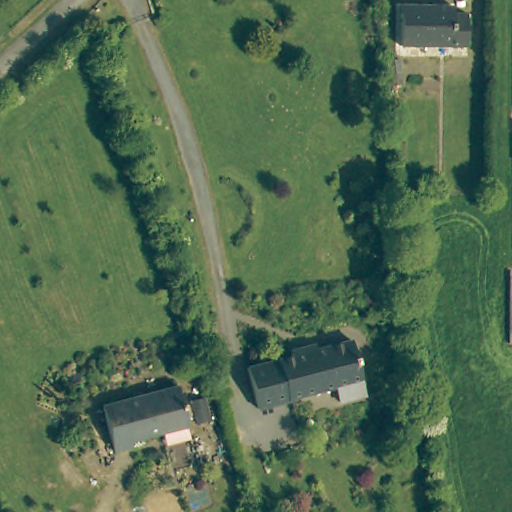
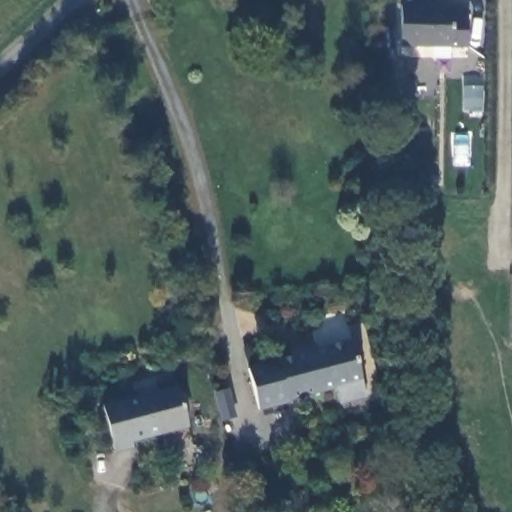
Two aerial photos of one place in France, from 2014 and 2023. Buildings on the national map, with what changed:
unchanged [(453,3),(453,12),(468,12),(467,45),(400,43),(402,1),(453,3)]
unchanged [(293,358),(292,353),(315,346),(316,351),(351,341),(367,396),(340,403),(336,390),(289,402),(290,403),(261,411),(250,370),(293,358)]
unchanged [(180,390),(190,428),(135,446),(136,450),(119,456),(105,410),(180,390)]
unchanged [(208,401),(212,423),(200,426),(194,405),(208,401)]

